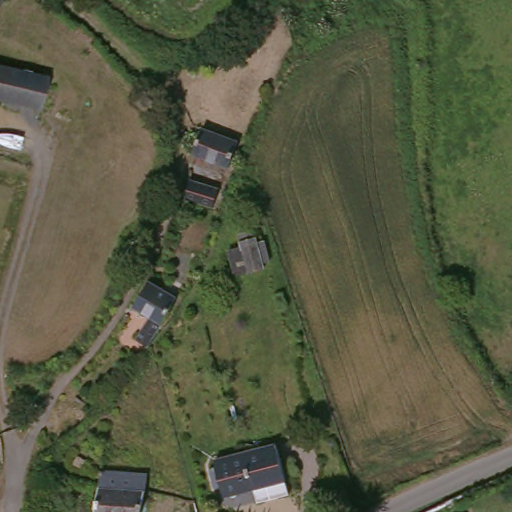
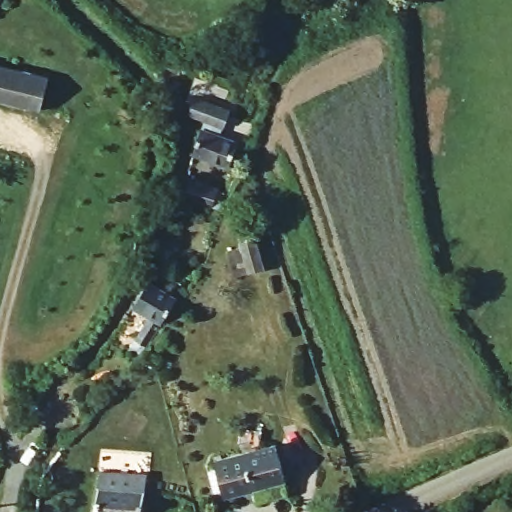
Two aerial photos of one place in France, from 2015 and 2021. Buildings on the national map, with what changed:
unchanged [(0,5),(0,0),(2,0),(0,5)]
unchanged [(103,56),(88,74),(41,39),(59,20),(103,56)]
unchanged [(33,107),(20,103),(0,98),(0,66),(42,77),(33,107)]
unchanged [(198,137),(203,123),(243,138),(233,167),(205,157),(201,162),(193,155),(198,137)]
unchanged [(199,174),(228,185),(219,206),(191,196),(199,174)]
unchanged [(239,248),(236,235),(252,231),(262,269),(234,277),(228,251),(239,248)]
unchanged [(148,282),(179,295),(156,346),(146,342),(156,318),(135,309),(148,282)]
unchanged [(278,442),(291,497),(258,506),(254,491),(226,498),(215,458),(278,442)]
unchanged [(102,467),(151,471),(149,491),(151,492),(149,512),(97,512),(100,485),(102,467)]

